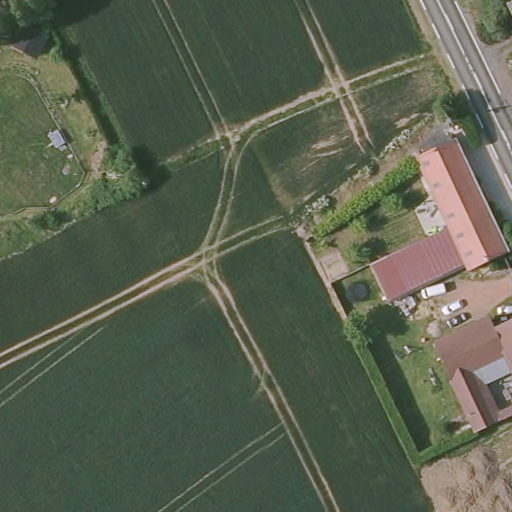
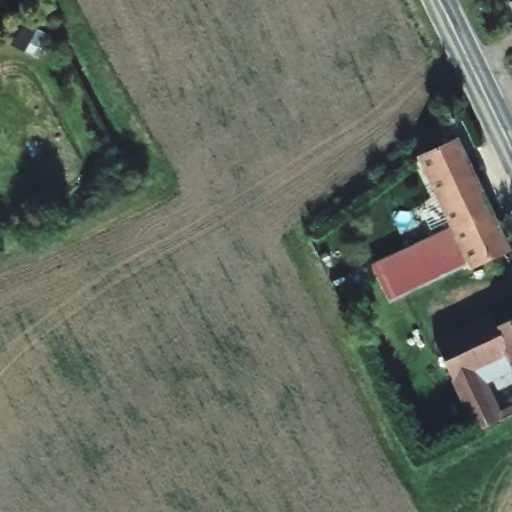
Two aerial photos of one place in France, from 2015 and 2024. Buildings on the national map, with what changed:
unchanged [(457,133),(510,245),(470,265),(453,229),(417,152),(457,133)]
unchanged [(404,297),(387,260),(453,229),(470,265),(404,297)]
unchanged [(436,343),(492,316),(497,327),(512,320),(512,359),(475,376),(489,408),(512,398),(512,413),(475,430),(436,343)]

